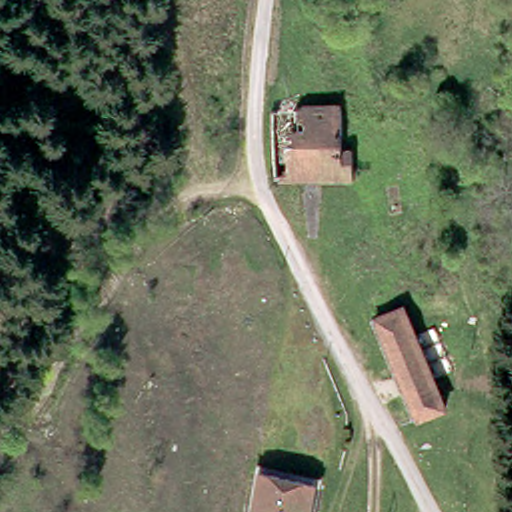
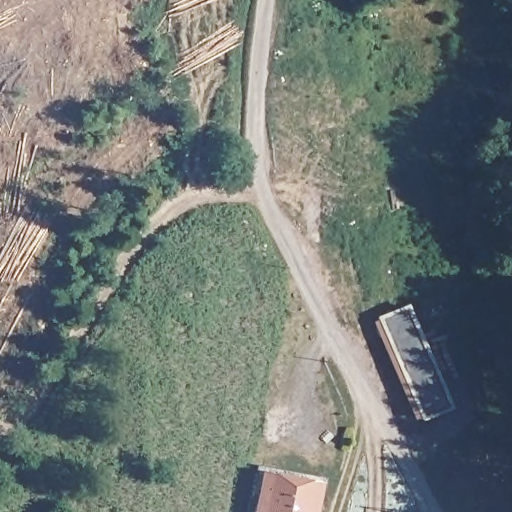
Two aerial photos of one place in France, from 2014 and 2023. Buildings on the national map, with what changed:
demolished [(276,100),(343,107),(345,172),(275,168),(276,100)]
unchanged [(442,400),(415,407),(374,315),(400,306),(442,400)]
unchanged [(312,475),(305,512),(246,512),(254,467),(312,475)]

